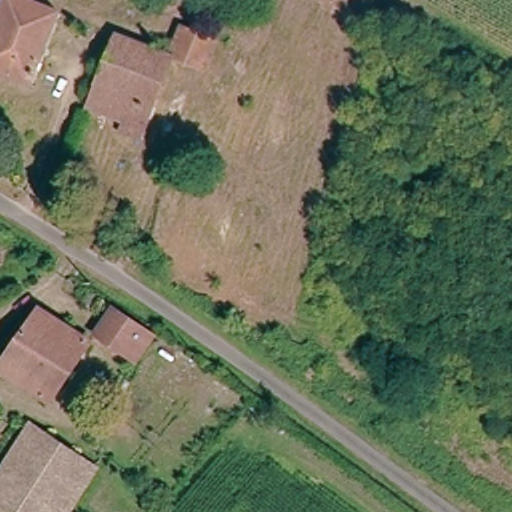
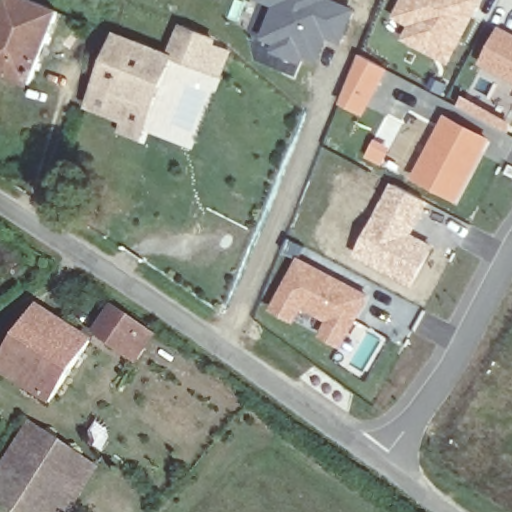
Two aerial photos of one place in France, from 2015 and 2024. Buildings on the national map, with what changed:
unchanged [(28,82),(0,71),(0,6),(3,0),(27,0),(55,11),(28,82)]
new [(317,62),(301,56),(298,63),(273,53),(276,45),(259,37),(272,4),(259,0),(336,0),(356,8),(343,43),(328,38),(317,62)]
new [(481,0),(448,65),(399,40),(407,27),(391,18),(400,0),(481,0)]
new [(498,25),(512,32),(512,84),(478,67),(498,25)]
unchanged [(185,32),(216,44),(205,73),(176,61),(174,60),(185,32)]
unchanged [(174,60),(176,61),(146,133),(145,133),(141,143),(125,136),(129,126),(93,111),(120,40),(174,60)]
new [(357,54),(388,68),(363,116),(338,104),(357,54)]
new [(463,95),(511,120),(506,131),(457,106),(463,95)]
new [(387,114),(403,121),(382,166),(364,156),(387,114)]
new [(444,114),(491,139),(458,203),(408,177),(444,114)]
new [(391,182),(429,203),(413,233),(434,244),(412,288),(353,255),(391,182)]
new [(287,237),(303,245),(296,258),(280,251),(287,237)]
new [(297,256),(370,294),(341,349),(318,336),(326,321),(302,309),(294,323),(269,310),(297,256)]
unchanged [(39,307),(91,340),(50,403),(0,371),(0,362),(29,321),(39,307)]
unchanged [(135,359),(128,354),(95,333),(111,309),(144,330),(145,329),(151,334),(135,359)]
unchanged [(85,481),(97,489),(83,512),(7,512),(0,507),(0,461),(25,421),(93,468),(85,481)]

